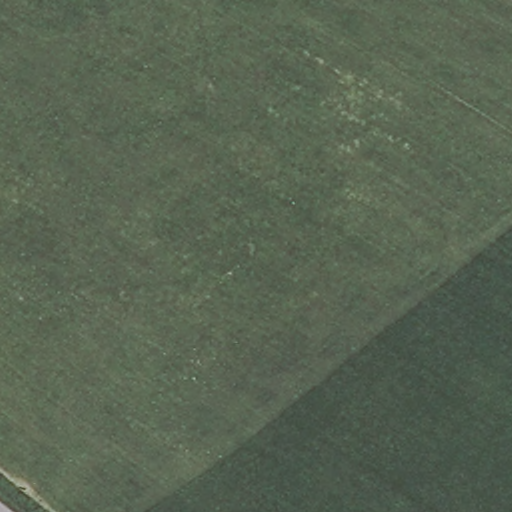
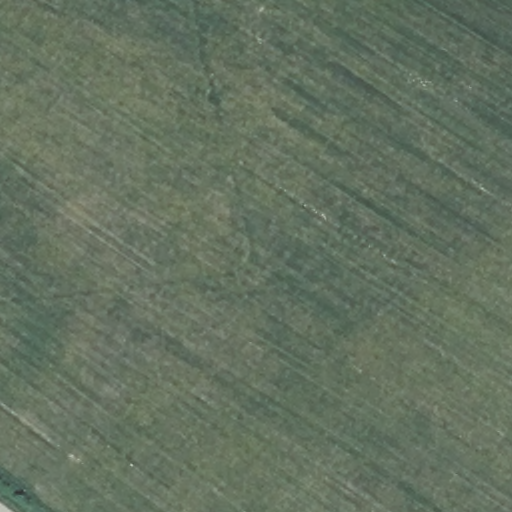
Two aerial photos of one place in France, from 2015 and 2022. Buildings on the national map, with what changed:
[]

